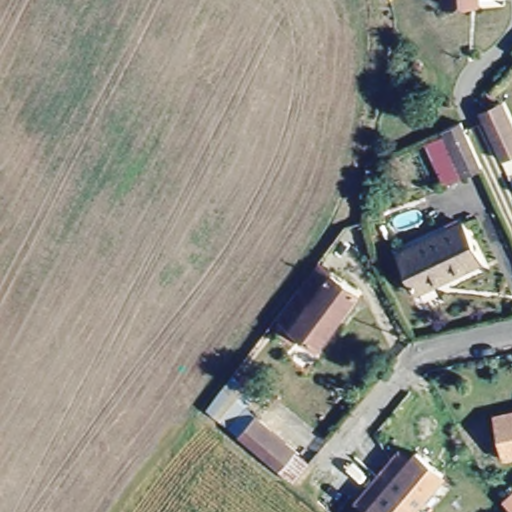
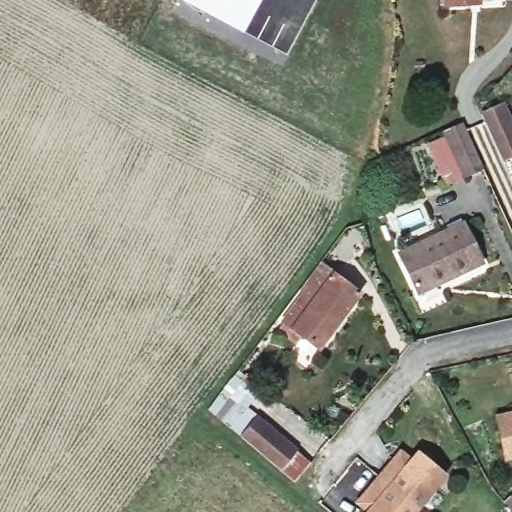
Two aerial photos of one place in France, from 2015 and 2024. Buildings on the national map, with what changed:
new [(243,33),(181,0),(260,0),(243,33)]
unchanged [(481,111),(502,101),(512,121),(512,152),(503,156),(481,111)]
unchanged [(471,192),(449,147),(467,137),(490,182),(471,192)]
unchanged [(422,292),(401,250),(464,220),(485,263),(422,292)]
unchanged [(346,321),(325,350),(290,325),(310,297),(301,290),(321,262),(365,293),(346,321)]
unchanged [(502,456),(493,415),(512,411),(512,454),(502,456)]
unchanged [(302,475),(288,465),(249,433),(264,416),(303,446),(317,457),(302,475)]
unchanged [(392,460),(400,450),(410,457),(416,450),(442,472),(409,512),(365,512),(366,510),(357,502),(365,492),(392,460)]

